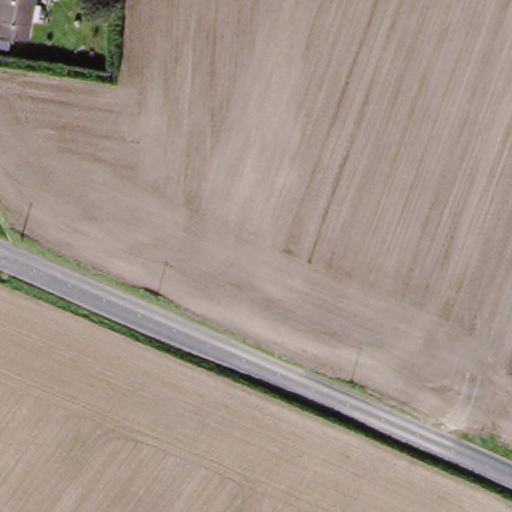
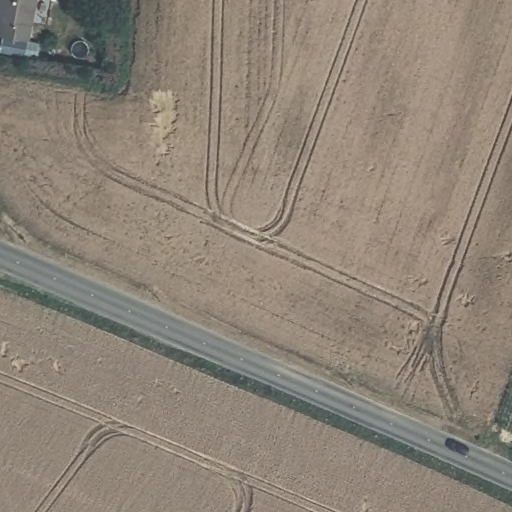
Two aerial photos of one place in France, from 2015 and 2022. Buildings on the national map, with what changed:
unchanged [(29,0),(23,38),(0,33),(0,0),(29,0)]

